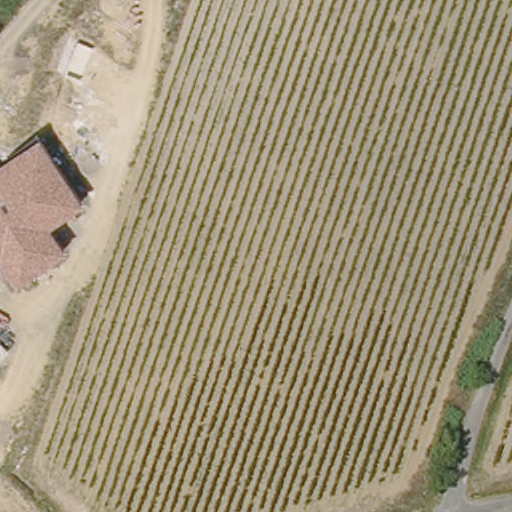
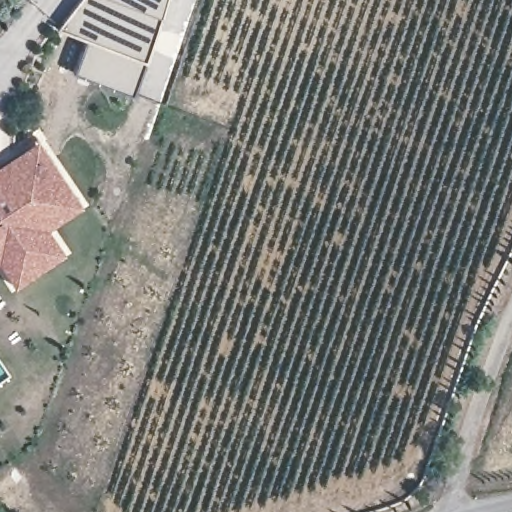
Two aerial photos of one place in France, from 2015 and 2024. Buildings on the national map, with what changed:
new [(79,0),(165,0),(161,15),(145,61),(132,95),(75,73),(88,40),(58,28),(79,0)]
unchanged [(80,204),(48,227),(63,251),(14,286),(0,265),(0,163),(37,139),(80,204)]

